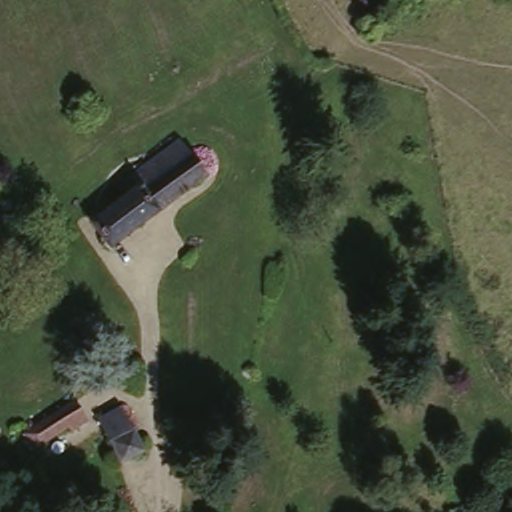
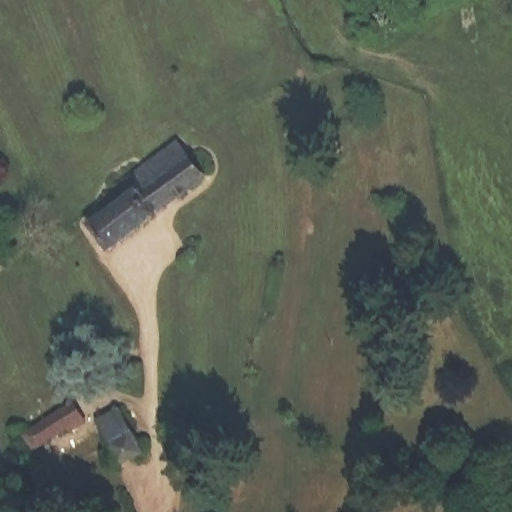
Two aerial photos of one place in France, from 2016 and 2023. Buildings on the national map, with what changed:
unchanged [(211,177),(113,243),(97,220),(137,192),(134,187),(141,183),(135,175),(185,139),(211,177)]
unchanged [(80,402),(88,416),(86,416),(89,422),(76,431),(73,425),(35,446),(28,432),(80,402)]
unchanged [(112,445),(98,418),(124,405),(146,447),(134,453),(121,461),(112,445)]
unchanged [(2,438),(0,439),(0,435),(2,438)]

